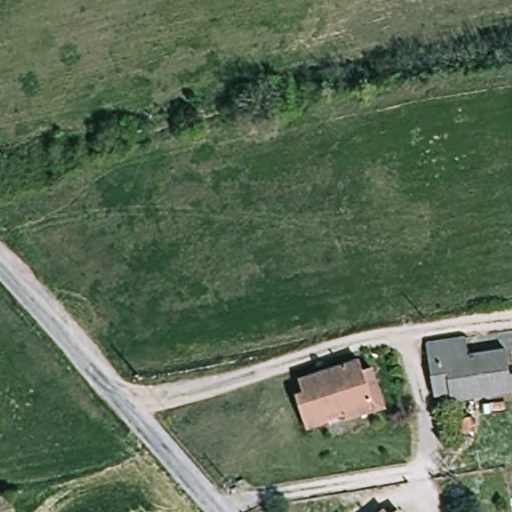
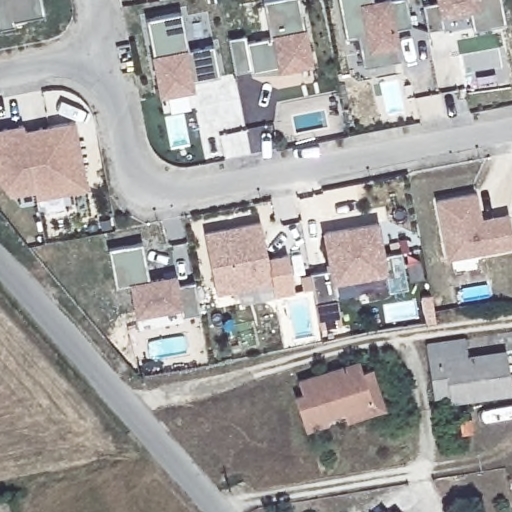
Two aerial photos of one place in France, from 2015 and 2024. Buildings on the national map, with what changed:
new [(13,21),(15,26),(0,28),(0,0),(42,0),(45,15),(13,21)]
new [(245,43),(269,38),(262,1),(265,0),(298,0),(310,68),(280,73),(278,70),(269,71),(250,75),(245,43)]
new [(360,53),(357,38),(345,40),(339,0),(373,0),(373,2),(384,0),(407,0),(411,28),(395,31),(397,46),(400,61),(362,69),(360,53)]
new [(438,0),(502,0),(506,26),(473,32),(469,11),(442,17),(445,29),(428,32),(423,5),(438,2),(438,0)]
new [(196,90),(161,97),(145,19),(181,11),(189,49),(217,44),(223,76),(205,80),(195,81),(196,90)]
new [(23,124),(25,130),(75,120),(87,188),(37,198),(35,191),(11,195),(0,182),(0,129),(23,124)]
new [(482,217),(508,213),(512,235),(512,247),(446,259),(435,199),(477,191),(482,217)]
new [(215,295),(203,233),(260,222),(266,254),(285,250),(291,280),(272,284),(236,291),(215,295)]
new [(331,269),(325,233),(378,222),(384,254),(401,251),(408,288),(390,291),(386,273),(335,283),(338,301),(317,305),(311,273),(331,269)]
new [(142,243),(148,279),(176,274),(178,285),(195,282),(200,313),(183,316),(181,309),(135,318),(128,285),(116,287),(109,248),(142,243)]
unchanged [(500,383),(502,398),(440,407),(440,399),(423,401),(416,349),(447,345),(450,363),(495,356),(500,383)]
unchanged [(306,431),(295,396),(302,394),(298,380),(358,360),(362,372),(371,369),(383,409),(346,421),(344,412),(326,418),(328,424),(306,431)]
unchanged [(13,512),(0,512),(0,496),(8,494),(13,512)]
unchanged [(387,510),(389,512),(385,512),(387,510)]

